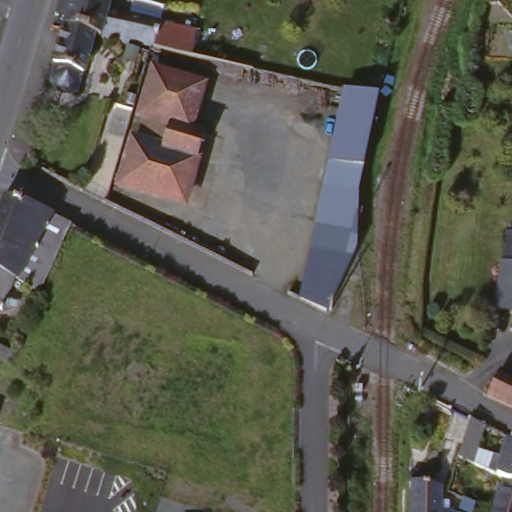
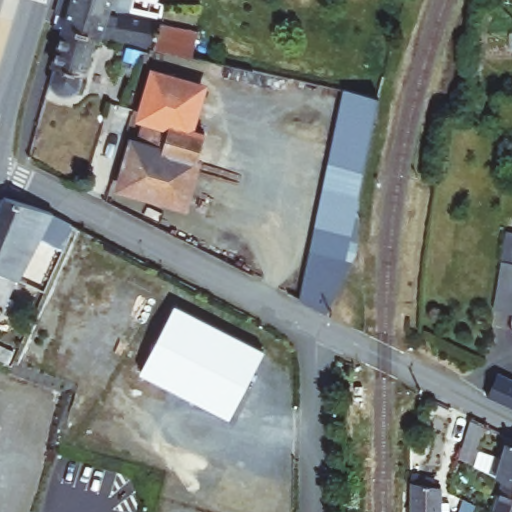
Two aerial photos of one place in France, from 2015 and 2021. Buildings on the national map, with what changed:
unchanged [(153,27),(144,49),(88,37),(57,30),(59,22),(65,0),(126,0),(121,20),(153,27)]
unchanged [(191,30),(183,59),(144,49),(153,27),(156,20),(191,30)]
unchanged [(88,37),(78,77),(76,76),(72,94),(64,95),(49,92),(44,87),(49,70),(47,69),(57,30),(88,37)]
unchanged [(195,115),(209,119),(201,145),(179,215),(112,195),(127,152),(154,161),(163,135),(134,126),(148,85),(199,102),(195,115)]
unchanged [(376,100),(347,266),(323,315),(296,299),(339,92),(376,100)]
demolished [(113,111),(129,116),(119,145),(103,140),(113,111)]
unchanged [(7,197),(53,217),(22,277),(4,270),(0,277),(0,215),(7,197)]
unchanged [(492,313),(500,262),(504,232),(512,234),(512,316),(498,314),(492,313)]
new [(264,350),(228,417),(139,370),(174,303),(264,350)]
unchanged [(512,407),(493,397),(502,381),(504,376),(512,380),(512,407)]
unchanged [(509,441),(512,443),(512,483),(497,477),(457,456),(470,419),(484,426),(479,442),(504,456),(509,441)]
unchanged [(486,511),(497,477),(512,483),(512,512),(486,512),(486,511)]
unchanged [(436,512),(410,512),(411,486),(438,487),(436,512)]

